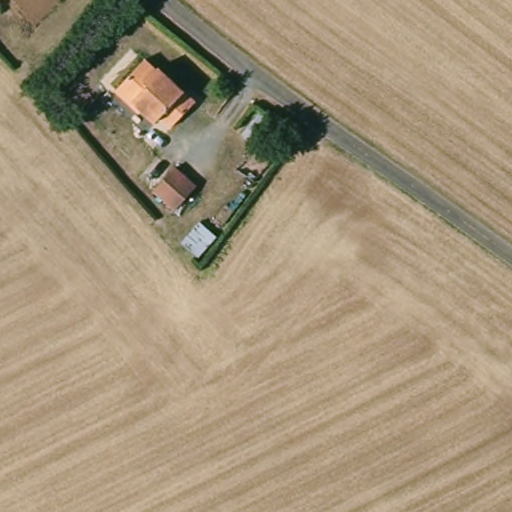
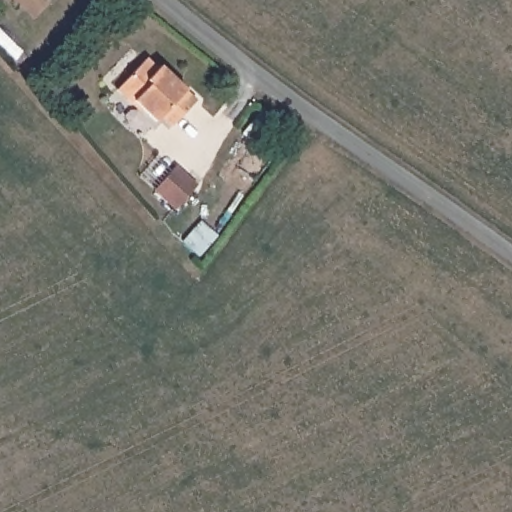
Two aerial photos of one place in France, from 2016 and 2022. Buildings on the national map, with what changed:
unchanged [(159,65),(198,99),(175,124),(162,114),(157,119),(136,100),(130,104),(116,91),(146,58),(157,68),(159,65)]
unchanged [(197,188),(177,211),(153,192),(173,168),(197,188)]

